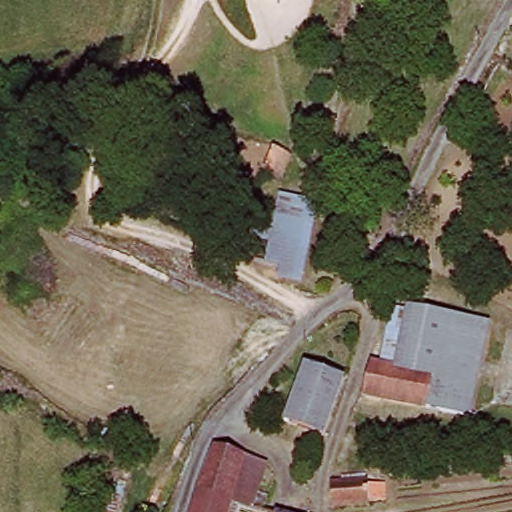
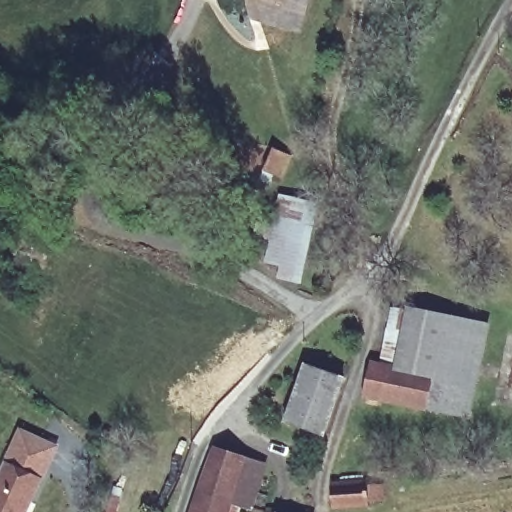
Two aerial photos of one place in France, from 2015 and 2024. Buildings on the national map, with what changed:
unchanged [(302,156),(280,150),(287,126),(309,133),(302,156)]
unchanged [(311,200),(310,208),(302,246),(270,235),(262,233),(272,194),(311,200)]
unchanged [(270,235),(302,246),(310,208),(317,210),(302,282),(280,276),(280,268),(263,265),(270,235)]
unchanged [(395,363),(404,307),(472,320),(462,375),(395,363)]
unchanged [(469,376),(459,417),(456,417),(367,398),(377,360),(395,363),(462,375),(465,376),(469,376)]
unchanged [(333,377),(319,433),(280,421),(297,367),(333,377)]
new [(60,445),(28,512),(0,512),(0,466),(19,426),(60,445)]
unchanged [(209,443),(240,454),(239,456),(255,462),(246,489),(255,492),(250,510),(222,501),(219,512),(185,512),(199,466),(209,443)]
unchanged [(370,486),(385,485),(387,500),(370,502),(370,506),(336,509),(335,499),(334,488),(335,482),(337,482),(369,478),(370,486)]
unchanged [(277,512),(270,512),(270,510),(277,512)]

